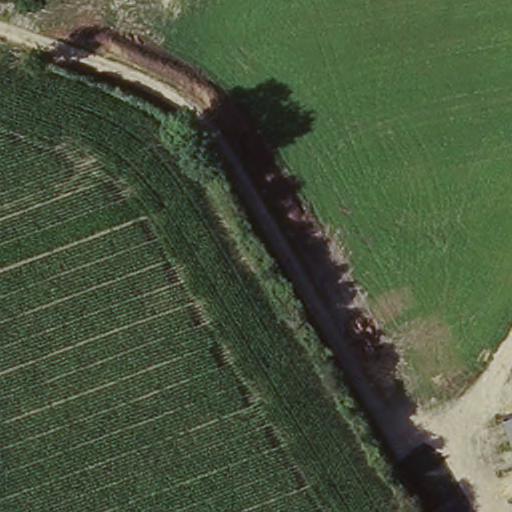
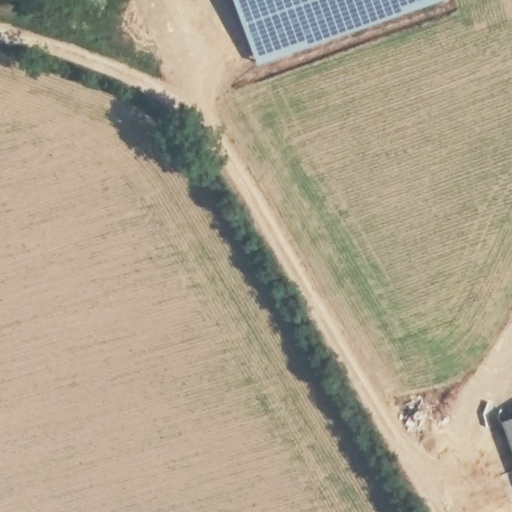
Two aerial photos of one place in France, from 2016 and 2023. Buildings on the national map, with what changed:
new [(446,1),(257,66),(234,0),(446,0),(446,1)]
unchanged [(506,422),(512,420),(512,437),(506,422)]

